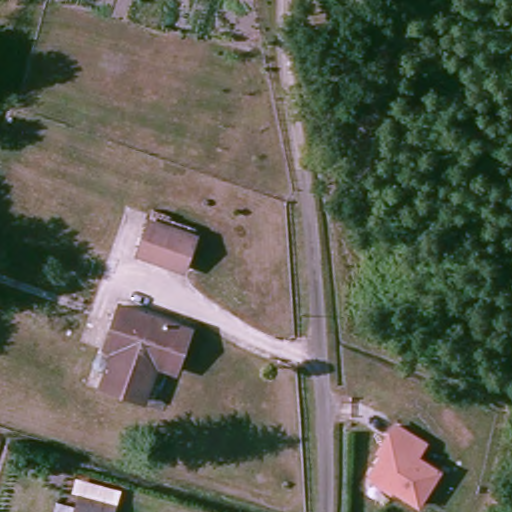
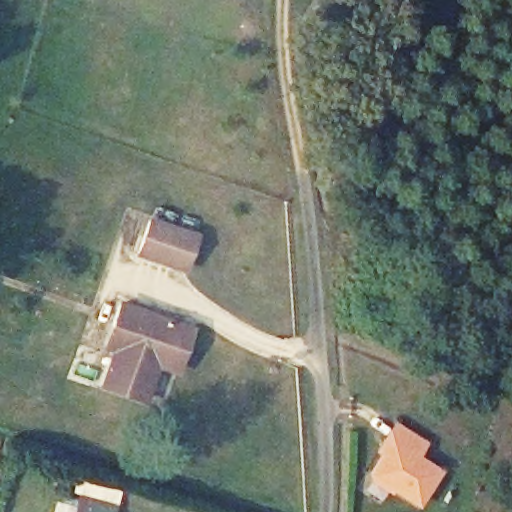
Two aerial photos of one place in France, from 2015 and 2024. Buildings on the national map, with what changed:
unchanged [(194,238),(182,269),(138,254),(150,222),(194,238)]
unchanged [(147,401),(105,386),(117,351),(107,347),(115,326),(123,303),(185,325),(194,328),(179,373),(170,370),(160,366),(147,401)]
unchanged [(426,448),(418,462),(440,475),(420,508),(375,480),(385,459),(380,456),(387,445),(396,429),(426,448)]
unchanged [(79,494),(114,503),(111,512),(51,512),(55,501),(74,506),(79,494)]

